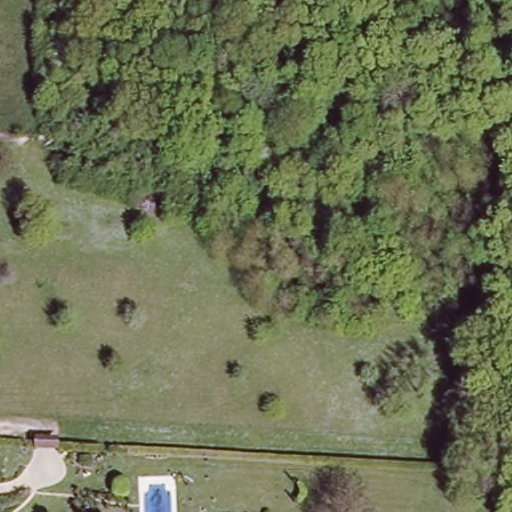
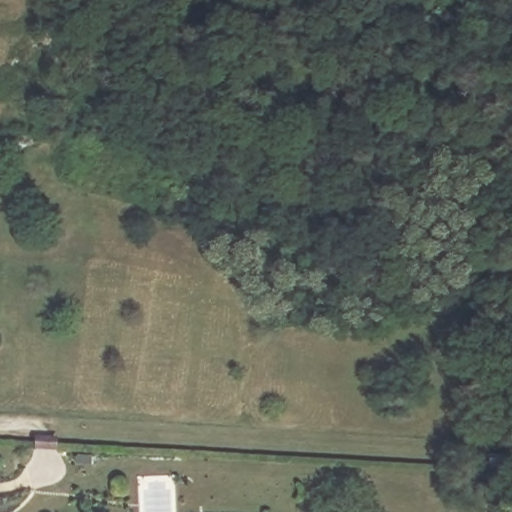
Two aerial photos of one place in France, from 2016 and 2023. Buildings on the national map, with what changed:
unchanged [(1,496),(0,497),(0,459),(1,496)]

